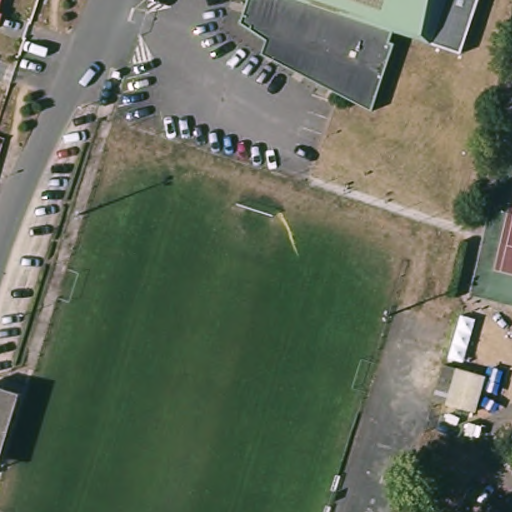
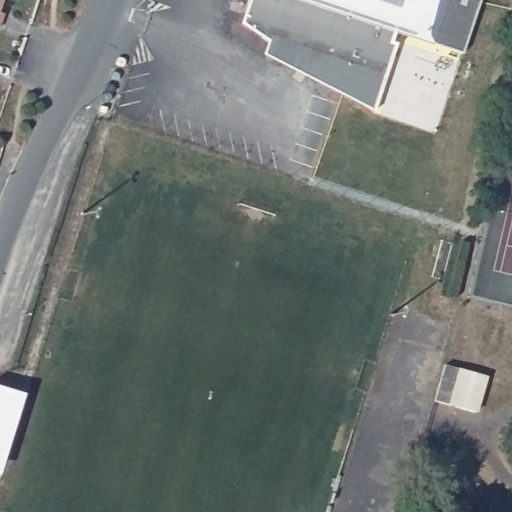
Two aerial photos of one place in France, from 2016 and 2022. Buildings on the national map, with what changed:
unchanged [(431,52),(398,39),(395,50),(400,52),(373,119),(237,21),(246,0),(452,0),(434,46),(431,52)]
unchanged [(434,46),(452,0),(479,0),(462,53),(434,46)]
unchanged [(490,377),(480,413),(440,402),(451,365),(490,377)]
unchanged [(24,391),(0,467),(0,383),(24,391)]

